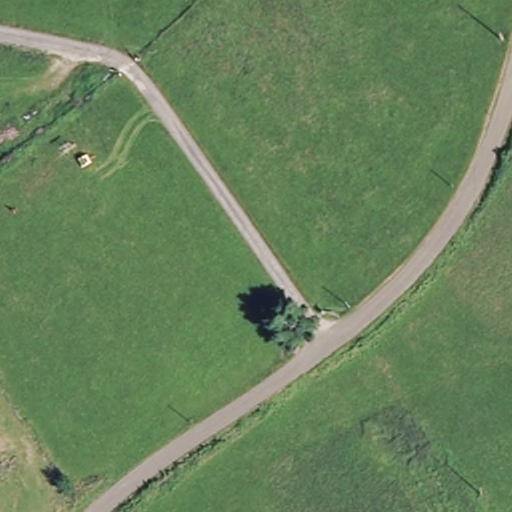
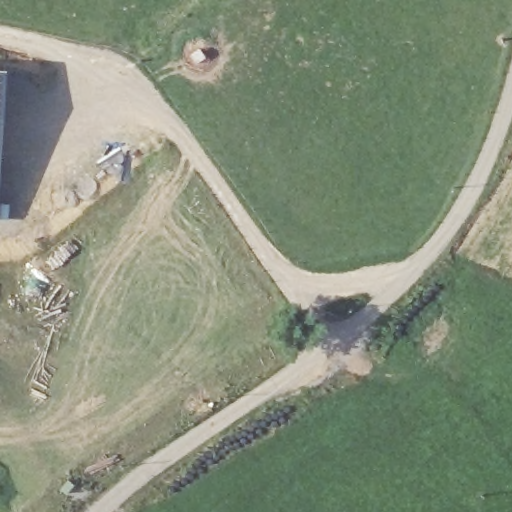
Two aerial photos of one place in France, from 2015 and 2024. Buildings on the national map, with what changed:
new [(7,65),(0,193),(0,65),(7,65)]

